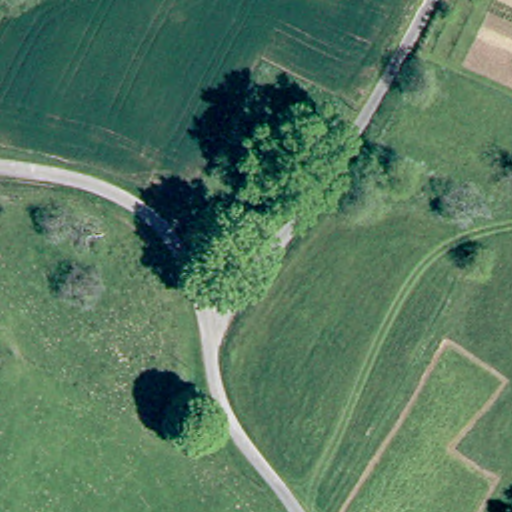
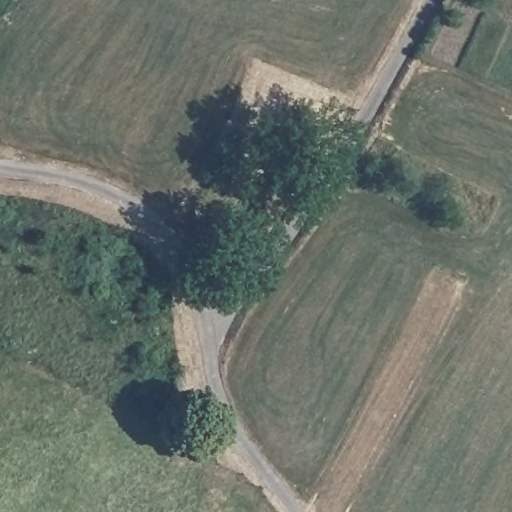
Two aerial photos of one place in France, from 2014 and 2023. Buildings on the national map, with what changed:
[]

